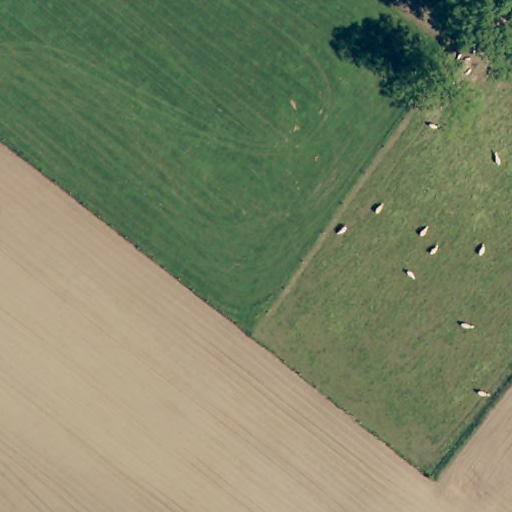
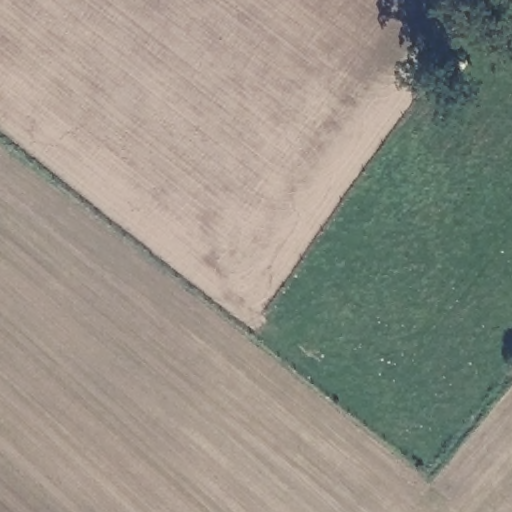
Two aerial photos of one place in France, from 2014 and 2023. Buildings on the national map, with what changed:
[]

